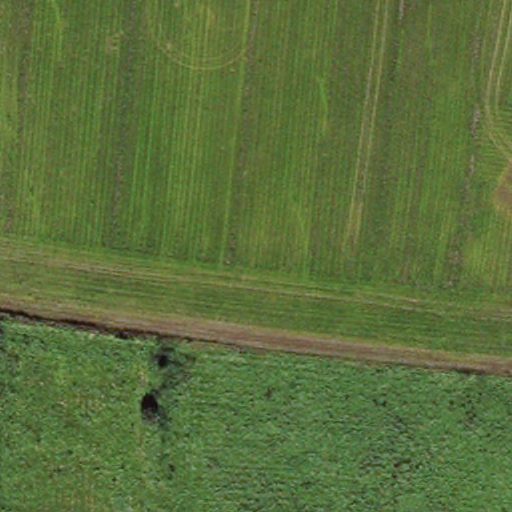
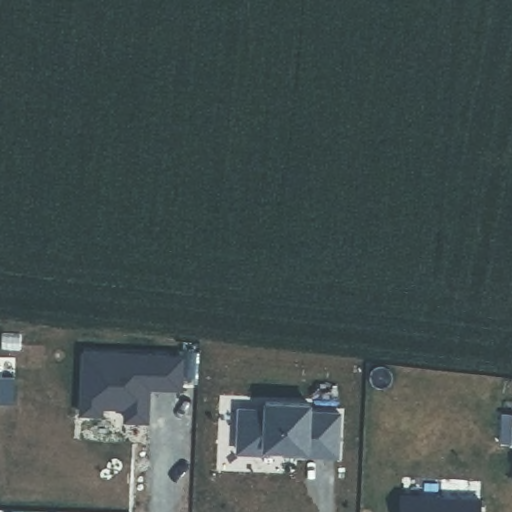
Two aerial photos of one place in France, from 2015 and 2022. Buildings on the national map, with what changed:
new [(82,351),(183,355),(182,385),(148,383),(147,419),(125,418),(125,405),(101,405),(101,412),(80,411),(82,351)]
new [(265,446),(265,451),(238,450),(240,407),(267,408),(267,400),(308,402),(308,410),(342,412),(340,455),(307,453),(284,452),(285,447),(265,446)]
new [(505,411),(512,411),(512,438),(503,438),(505,411)]
new [(403,495),(482,498),(481,512),(402,512),(403,495)]

